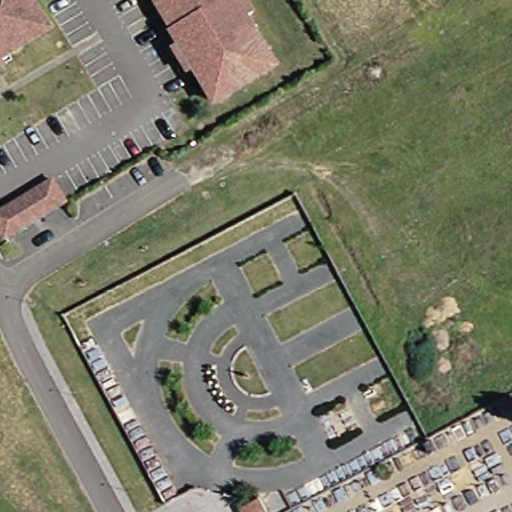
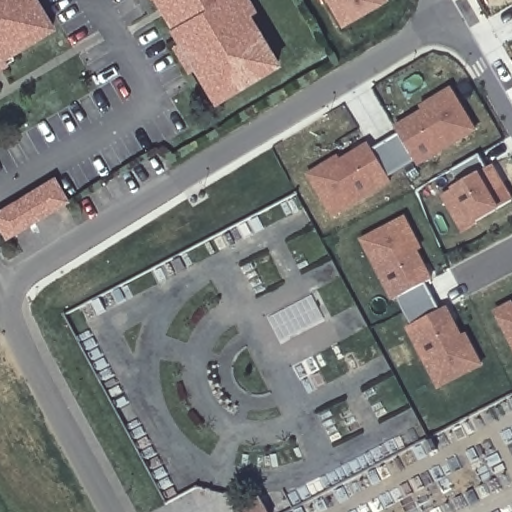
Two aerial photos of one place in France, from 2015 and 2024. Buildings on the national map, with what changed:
unchanged [(40,21),(44,28),(31,36),(0,54),(0,0),(27,0),(40,21)]
unchanged [(195,79),(186,63),(180,67),(164,40),(170,37),(162,23),(163,22),(150,0),(242,0),(245,6),(240,10),(261,45),(269,59),(263,63),(213,93),(206,97),(195,79)]
new [(341,23),(331,6),(328,0),(380,0),(341,23)]
new [(341,162),(369,145),(372,151),(399,135),(396,129),(424,112),(421,108),(451,90),(475,131),(456,143),(419,165),(413,156),(416,162),(388,178),(385,173),(347,196),(353,205),(334,217),(309,176),(339,158),(341,162)]
new [(473,224),(453,189),(459,186),(451,171),(479,156),(488,169),(492,167),(512,202),(473,224)]
new [(385,173),(391,182),(353,205),(347,196),(385,173)]
unchanged [(0,234),(0,209),(1,209),(49,180),(62,201),(14,230),(2,237),(0,234)]
new [(462,231),(446,203),(458,197),(473,224),(462,231)]
new [(439,364),(418,324),(412,327),(397,298),(403,295),(393,300),(373,261),(363,241),(405,219),(421,250),(417,252),(431,280),(426,283),(441,312),(447,309),(462,338),(466,335),(482,366),(440,387),(430,369),(439,364)]
new [(512,304),(512,343),(496,313),(512,304)]
new [(418,324),(439,364),(430,369),(409,329),(418,324)]
unchanged [(235,512),(233,508),(238,505),(251,498),(259,512),(235,512)]

